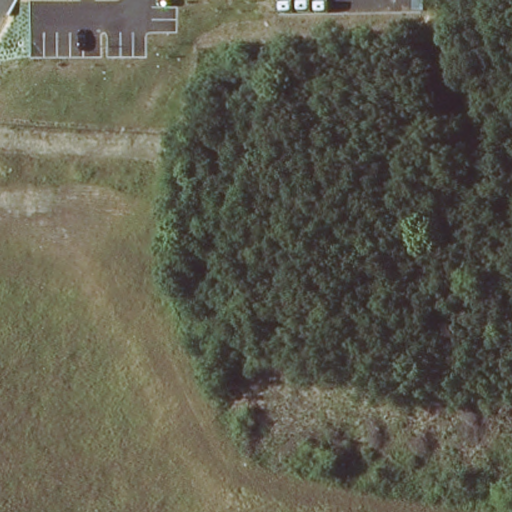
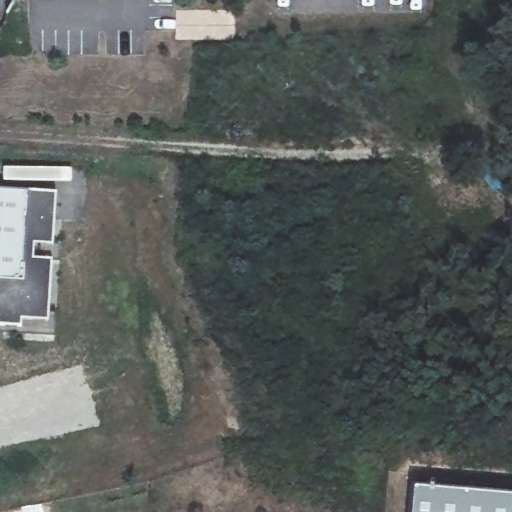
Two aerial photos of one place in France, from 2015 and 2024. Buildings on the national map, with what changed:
new [(48,315),(55,315),(55,339),(0,335),(0,191),(56,194),(48,315)]
new [(416,486),(512,496),(512,512),(413,512),(416,486)]

